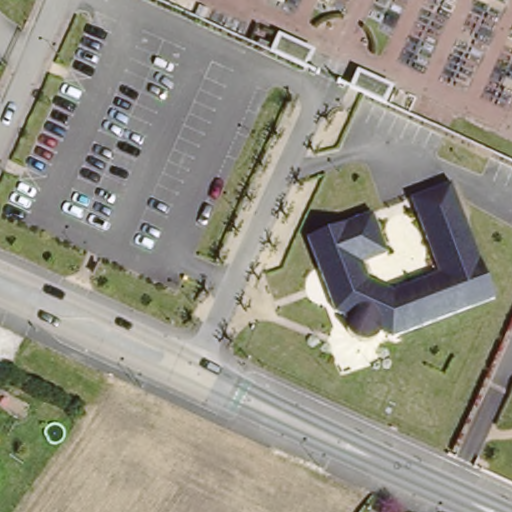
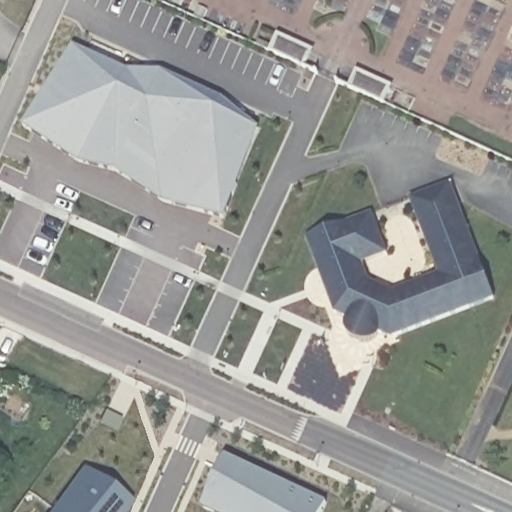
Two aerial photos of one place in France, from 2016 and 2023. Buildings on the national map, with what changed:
unchanged [(278,35),(317,52),(309,69),(270,53),(278,35)]
new [(162,206),(119,177),(78,165),(20,128),(75,43),(134,68),(166,68),(225,95),(265,128),(232,225),(162,206)]
unchanged [(359,72),(395,88),(386,108),(350,89),(359,72)]
unchanged [(310,237),(375,214),(387,246),(390,254),(365,264),(371,281),(395,291),(440,275),(413,200),(453,186),(497,300),(395,340),(382,335),(382,336),(382,338),(380,339),(380,340),(379,341),(378,342),(377,342),(376,343),(375,344),(373,344),(372,345),(370,346),(369,346),(367,346),(366,346),(365,346),(363,346),(362,346),(361,346),(360,345),(358,345),(357,344),(356,344),(355,343),(354,342),(353,341),(352,340),(351,339),(350,338),(350,337),(349,336),(348,335),(348,334),(347,332),(347,331),(347,330),(347,329),(347,327),(347,326),(347,325),(347,323),(347,322),(348,321),(348,320),(337,315),(310,237)]
new [(226,457),(330,502),(325,512),(217,512),(205,507),(226,457)]
new [(55,512),(85,470),(133,506),(129,512),(55,512)]

